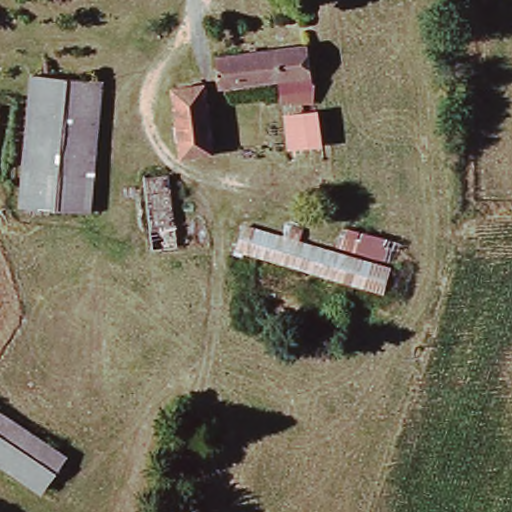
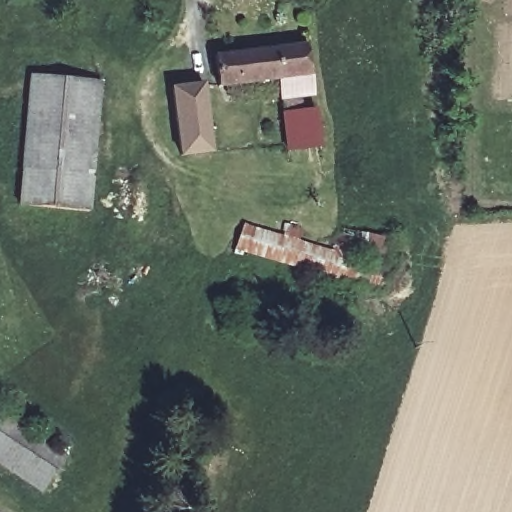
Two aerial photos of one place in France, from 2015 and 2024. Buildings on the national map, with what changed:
unchanged [(220,56),(312,44),(319,96),(288,100),(285,80),(225,88),(220,56)]
unchanged [(107,85),(89,216),(17,204),(37,75),(107,85)]
unchanged [(184,156),(176,87),(205,84),(212,153),(184,156)]
unchanged [(326,143),(295,147),(291,116),(322,111),(326,143)]
unchanged [(146,180),(170,177),(179,243),(180,251),(155,254),(152,228),(146,180)]
unchanged [(247,227),(340,252),(350,225),(404,244),(383,295),(240,253),(247,227)]
unchanged [(45,497),(0,467),(0,410),(70,456),(45,497)]

